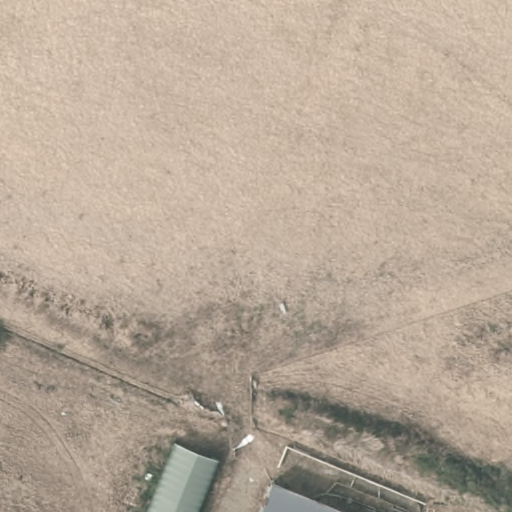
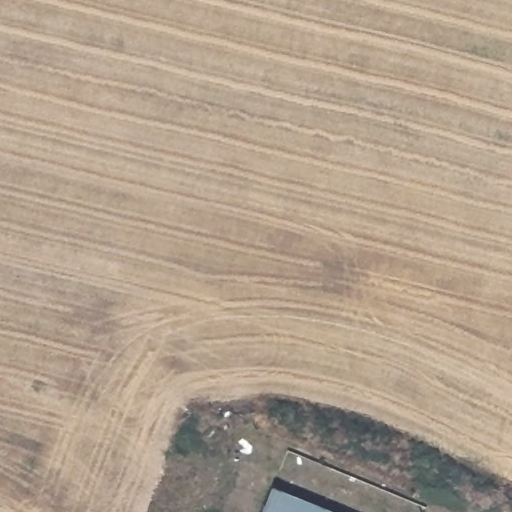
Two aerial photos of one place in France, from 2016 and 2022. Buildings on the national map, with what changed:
demolished [(215,463),(197,512),(148,512),(175,446),(215,463)]
unchanged [(338,512),(261,512),(272,484),(338,512)]

